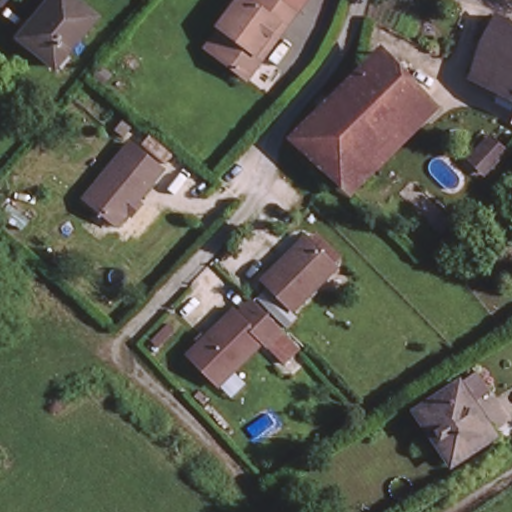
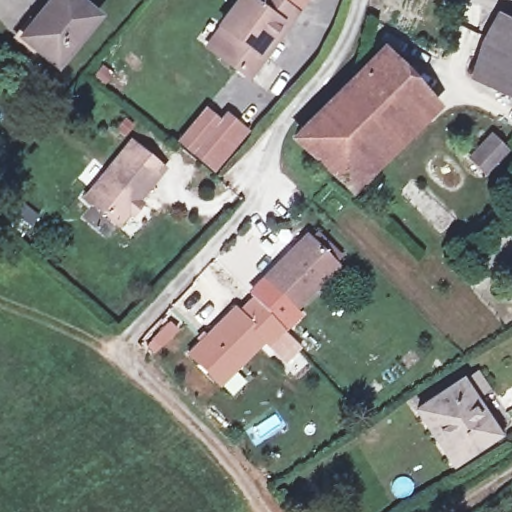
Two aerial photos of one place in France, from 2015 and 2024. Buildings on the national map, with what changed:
unchanged [(17,37),(49,0),(79,0),(99,18),(54,70),(17,37)]
unchanged [(234,0),(279,0),(290,8),(293,10),(283,24),(262,53),(261,54),(246,75),(239,69),(215,51),(203,43),(217,23),(234,0)]
unchanged [(472,76),(492,18),(512,26),(512,98),(472,76)]
unchanged [(366,151),(381,163),(360,185),(298,141),(380,49),(424,96),(366,151)]
unchanged [(435,108),(381,163),(366,151),(424,96),(435,108)]
new [(205,106),(219,119),(225,111),(249,131),(214,173),(176,141),(205,106)]
unchanged [(167,163),(122,218),(90,192),(135,138),(167,163)]
unchanged [(486,144),(500,160),(482,177),(467,161),(486,144)]
unchanged [(264,273),(305,232),(307,235),(316,226),(342,252),(334,261),(293,302),(264,273)]
unchanged [(252,295),(280,323),(265,339),(260,334),(219,376),(190,348),(232,304),(237,309),(252,295)]
unchanged [(461,386),(475,407),(470,411),(489,440),(452,464),(417,415),(461,386)]

